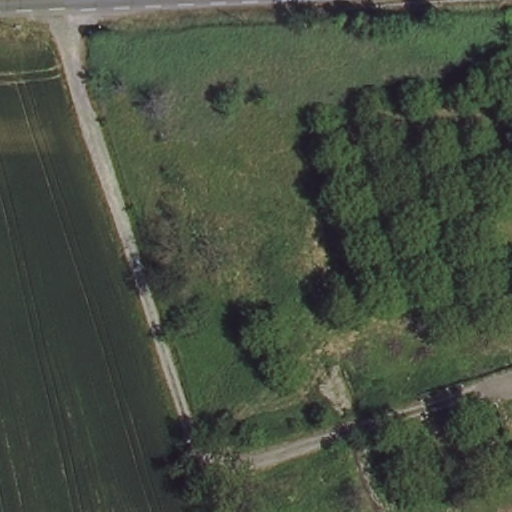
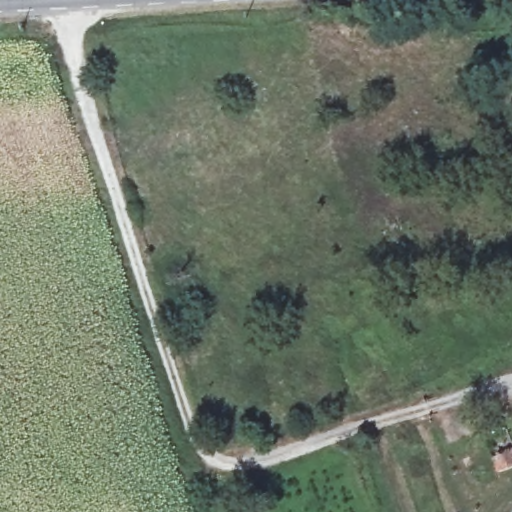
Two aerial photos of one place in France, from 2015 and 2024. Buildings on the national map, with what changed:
unchanged [(489,459),(477,430),(502,422),(512,449),(512,471),(496,477),(489,459)]

